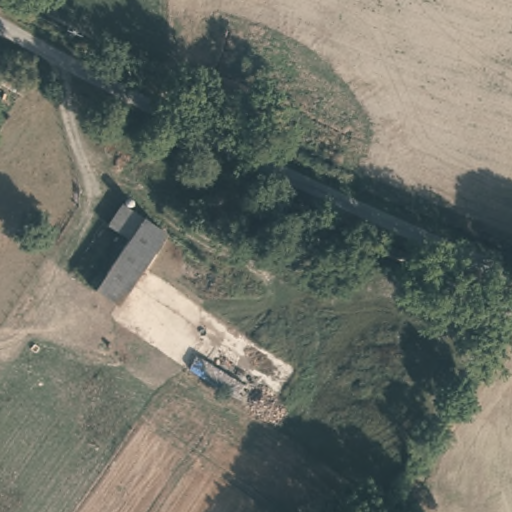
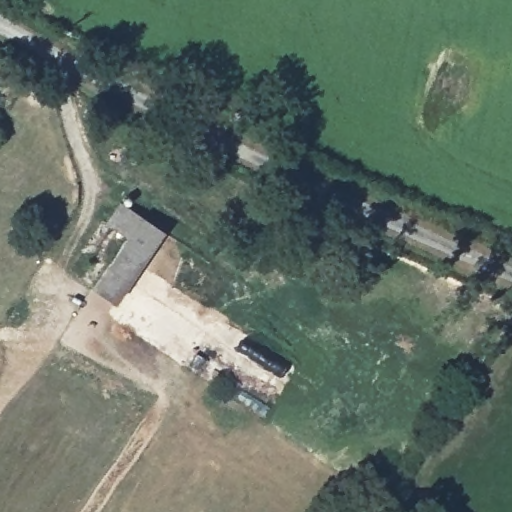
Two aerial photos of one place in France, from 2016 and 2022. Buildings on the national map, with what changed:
unchanged [(146,259),(122,296),(99,282),(132,229),(111,216),(124,194),(169,223),(146,259)]

